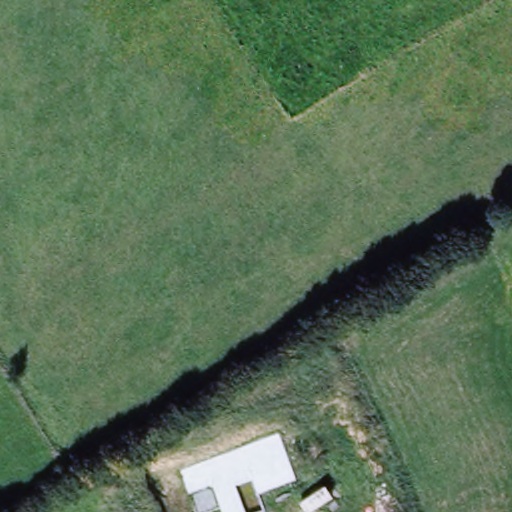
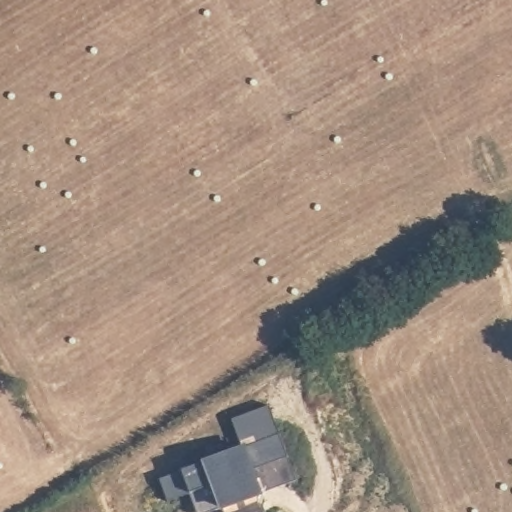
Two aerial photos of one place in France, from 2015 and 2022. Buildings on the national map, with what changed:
new [(295,482),(257,496),(263,512),(221,512),(220,509),(211,512),(194,512),(179,470),(278,435),(295,482)]

